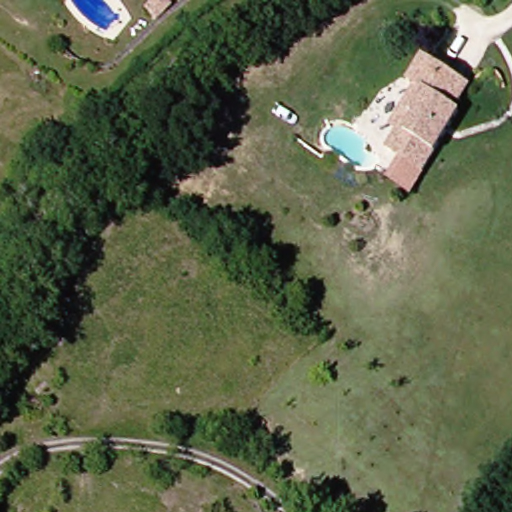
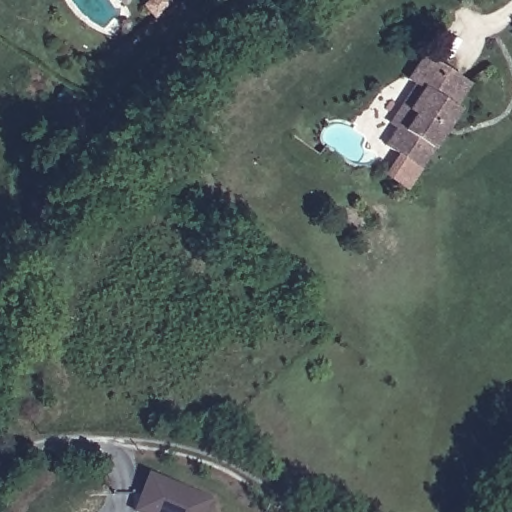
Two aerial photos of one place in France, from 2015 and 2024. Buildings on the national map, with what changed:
unchanged [(155,30),(137,40),(130,26),(148,16),(155,30)]
unchanged [(464,114),(440,147),(410,191),(387,177),(403,154),(392,145),(403,128),(410,132),(421,115),(413,111),(429,86),(415,78),(430,55),(478,89),(464,114)]
new [(150,475),(215,501),(211,512),(136,512),(150,475)]

